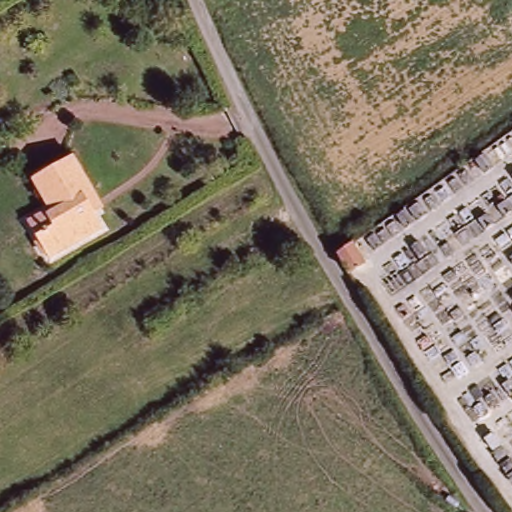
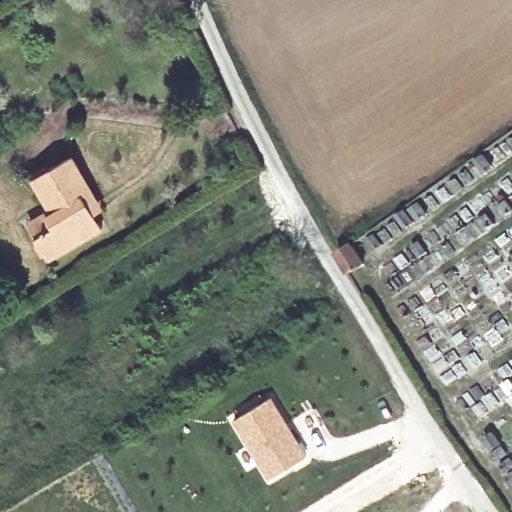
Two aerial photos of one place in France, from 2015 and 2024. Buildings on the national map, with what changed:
unchanged [(49,225),(55,220),(35,188),(72,161),(92,197),(105,219),(96,225),(104,236),(50,268),(36,246),(30,236),(49,225)]
new [(271,395),(306,453),(268,476),(231,420),(271,395)]

